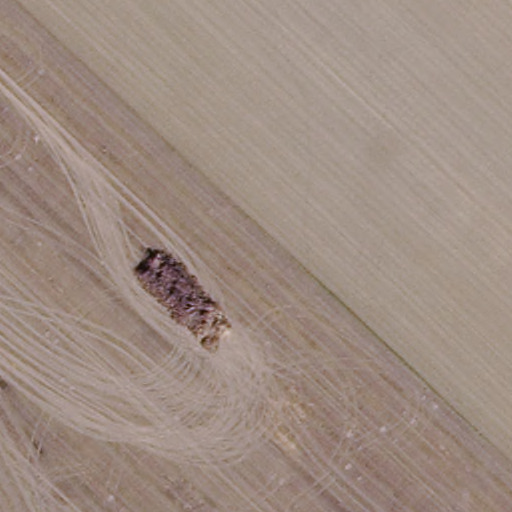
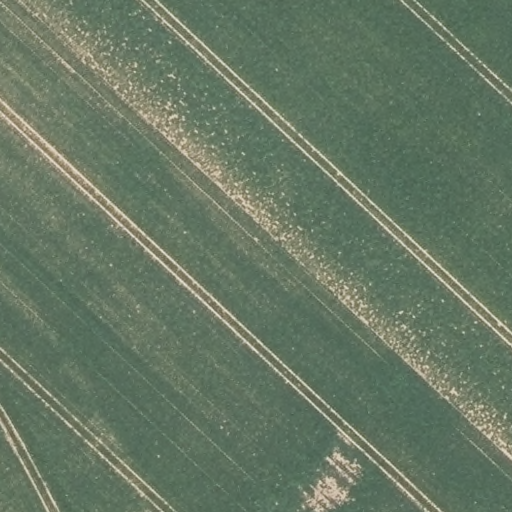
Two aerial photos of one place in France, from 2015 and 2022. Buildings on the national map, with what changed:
[]

